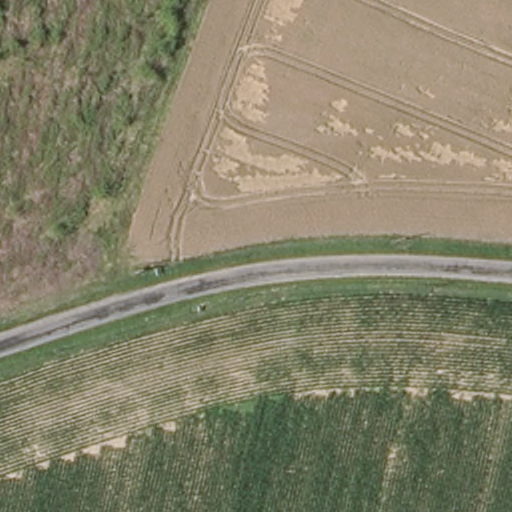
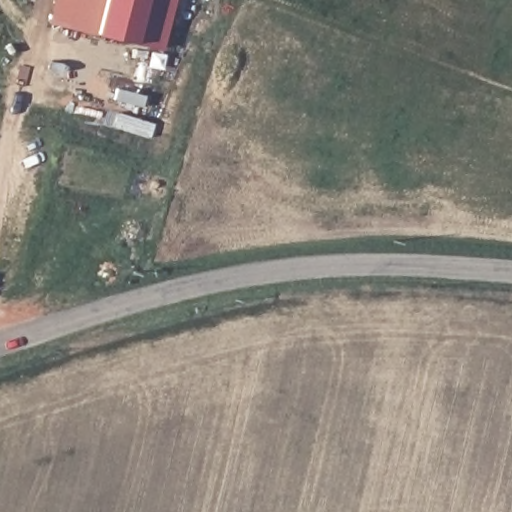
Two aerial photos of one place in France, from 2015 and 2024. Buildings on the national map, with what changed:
new [(161,49),(131,43),(93,33),(46,23),(52,0),(173,0),(161,49)]

